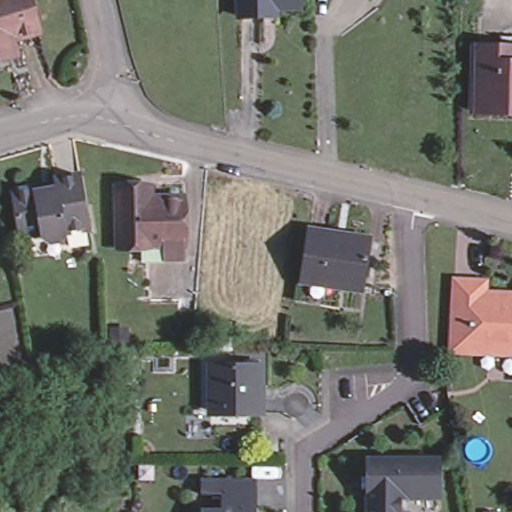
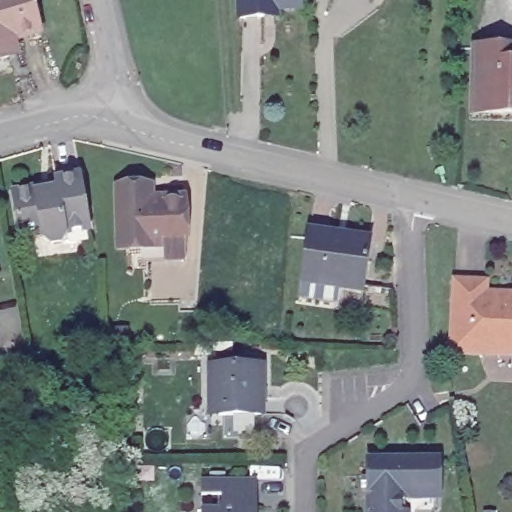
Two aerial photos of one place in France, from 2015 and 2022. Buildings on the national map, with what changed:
unchanged [(43,32),(16,39),(20,56),(0,61),(0,0),(33,0),(43,32)]
unchanged [(299,16),(283,17),(274,17),(274,24),(248,24),(239,24),(238,0),(299,0),(299,16)]
unchanged [(470,50),(481,50),(498,51),(507,52),(512,52),(512,116),(504,116),(479,115),(469,114),(470,50)]
unchanged [(34,186),(53,182),(53,178),(80,173),(87,208),(84,208),(87,226),(66,230),(59,239),(51,240),(44,236),(43,232),(21,236),(13,191),(34,186)]
unchanged [(116,243),(116,183),(149,184),(150,194),(182,195),(182,244),(182,257),(138,256),(138,243),(116,243)]
unchanged [(366,240),(360,290),(300,283),(305,232),(366,240)]
unchanged [(483,295),(512,296),(512,347),(481,346),(480,353),(452,352),(455,282),(484,284),(483,295)]
unchanged [(210,370),(212,367),(215,366),(261,366),(260,415),(218,415),(210,415),(210,397),(210,370)]
unchanged [(434,512),(374,512),(374,455),(444,456),(444,502),(434,512)]
unchanged [(202,512),(202,509),(222,509),(222,494),(202,494),(202,479),(257,480),(256,512),(202,512)]

